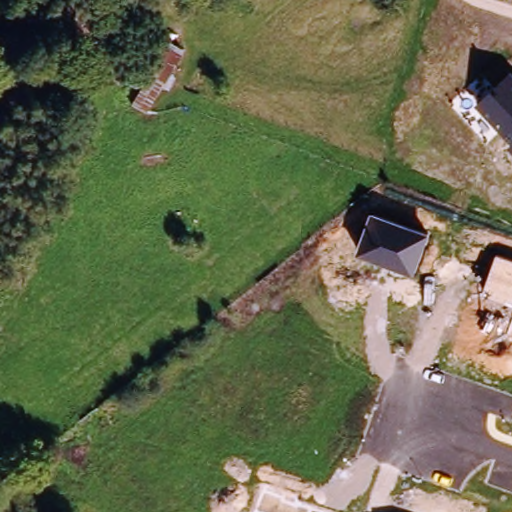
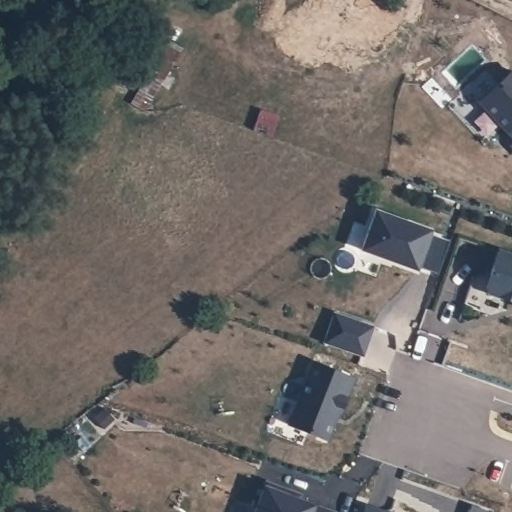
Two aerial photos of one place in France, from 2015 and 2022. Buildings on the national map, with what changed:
unchanged [(512,136),(479,101),(512,74),(512,136)]
unchanged [(512,144),(512,148),(510,145),(512,144)]
unchanged [(432,230),(417,272),(361,251),(375,209),(432,230)]
unchanged [(512,304),(484,295),(498,254),(512,258),(512,304)]
new [(334,314),(373,327),(363,356),(324,343),(334,314)]
new [(314,363),(354,379),(341,412),(339,411),(327,440),(289,425),(314,363)]
new [(317,505),(334,512),(255,512),(264,485),(317,505)]
unchanged [(383,512),(365,512),(366,506),(383,512)]

